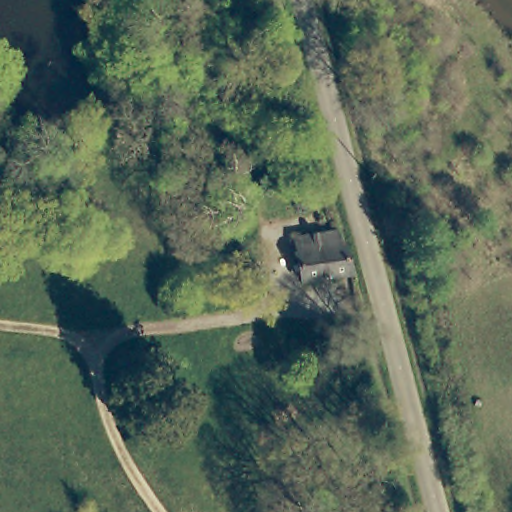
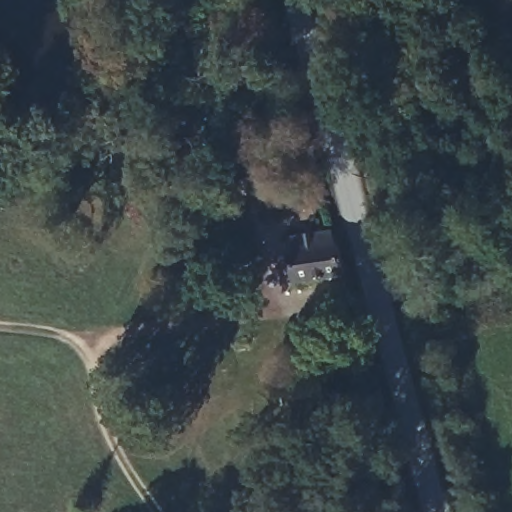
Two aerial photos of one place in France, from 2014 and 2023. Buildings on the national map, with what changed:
unchanged [(290,241),(334,234),(346,276),(299,284),(295,266),(290,241)]

